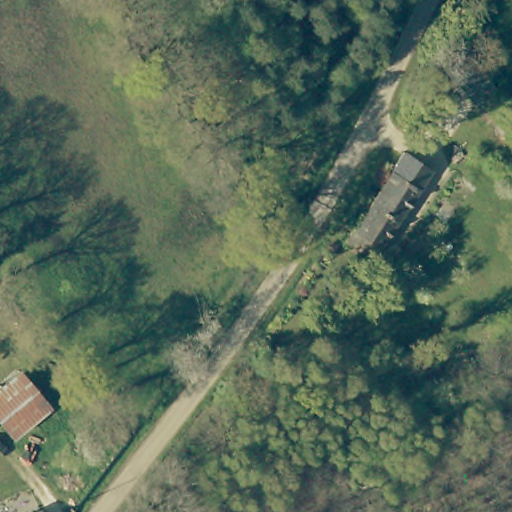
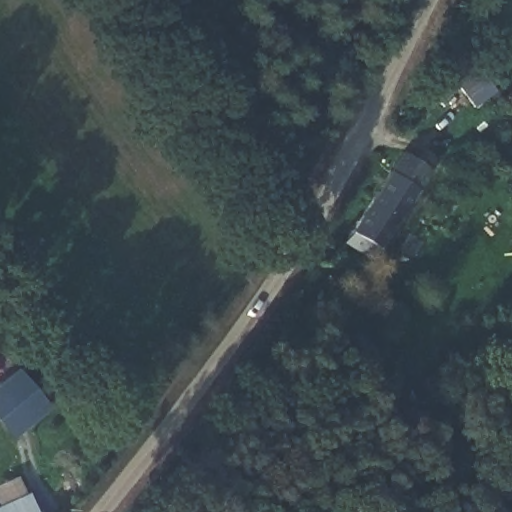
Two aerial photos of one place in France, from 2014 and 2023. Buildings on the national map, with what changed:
unchanged [(350,243),(394,173),(403,159),(428,176),(421,189),(377,260),(350,243)]
unchanged [(21,377),(50,409),(18,442),(0,422),(0,394),(21,377)]
unchanged [(38,502),(41,512),(9,512),(19,509),(38,502)]

